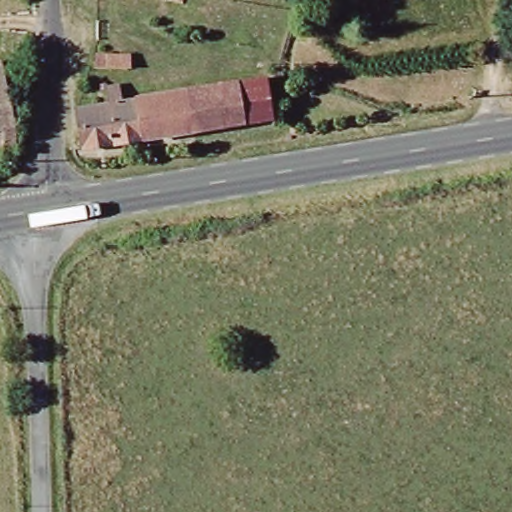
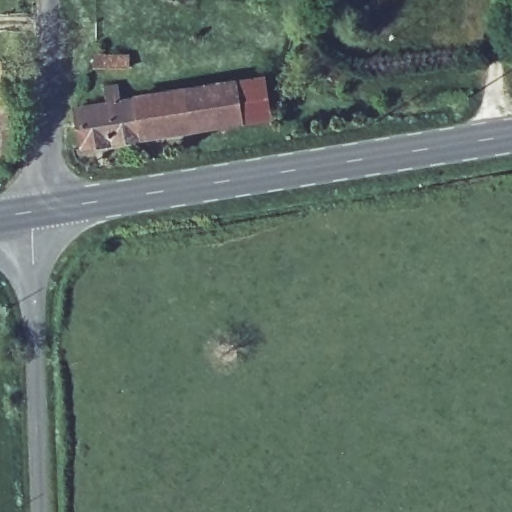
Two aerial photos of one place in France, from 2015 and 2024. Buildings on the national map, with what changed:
unchanged [(129,66),(93,65),(94,51),(114,51),(115,45),(124,45),(122,51),(130,52),(129,66)]
unchanged [(0,160),(0,69),(8,67),(21,127),(20,157),(0,160)]
unchanged [(264,81),(270,119),(240,125),(234,86),(264,81)]
unchanged [(194,131),(187,94),(234,86),(240,125),(194,131)]
unchanged [(85,150),(79,112),(99,109),(96,94),(121,89),(124,102),(187,94),(194,131),(85,150)]

